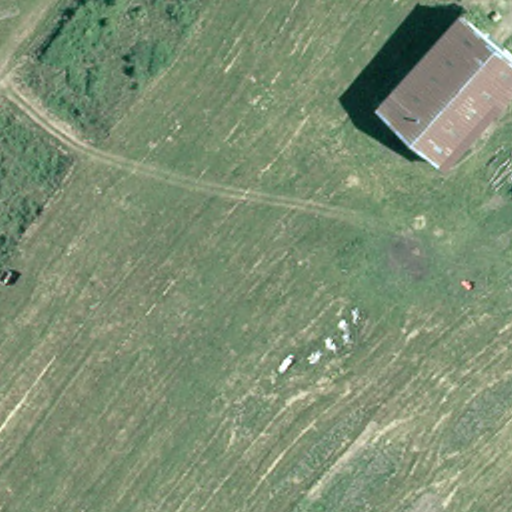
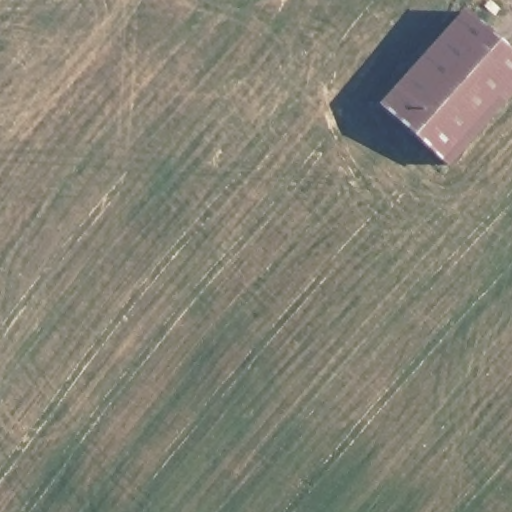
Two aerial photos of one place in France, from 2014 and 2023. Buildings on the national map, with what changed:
unchanged [(443,159),(380,97),(466,7),(512,51),(512,86),(443,159)]

